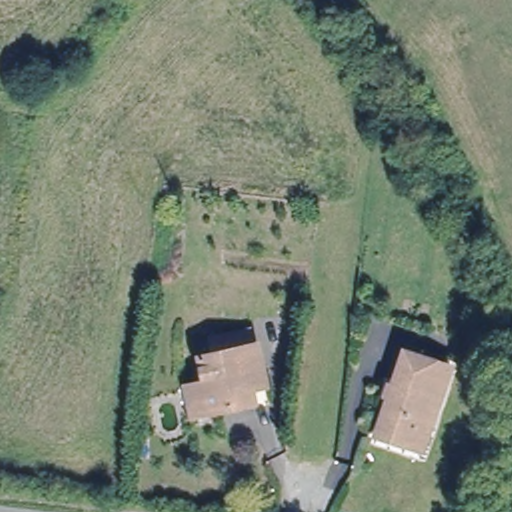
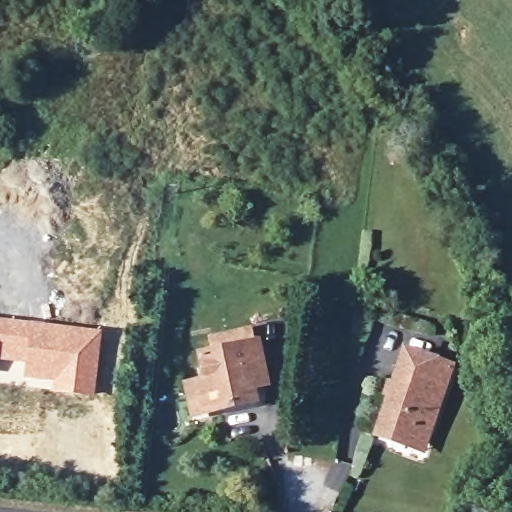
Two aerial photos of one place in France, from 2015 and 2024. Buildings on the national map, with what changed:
unchanged [(481,219),(469,225),(453,195),(465,189),(481,219)]
new [(102,332),(95,397),(51,392),(52,383),(23,381),(24,365),(0,362),(0,320),(102,332)]
unchanged [(190,378),(208,375),(203,348),(259,338),(266,376),(253,378),(256,395),(213,402),(195,406),(190,378)]
unchanged [(408,440),(378,428),(406,350),(452,366),(430,427),(423,445),(408,440)]

